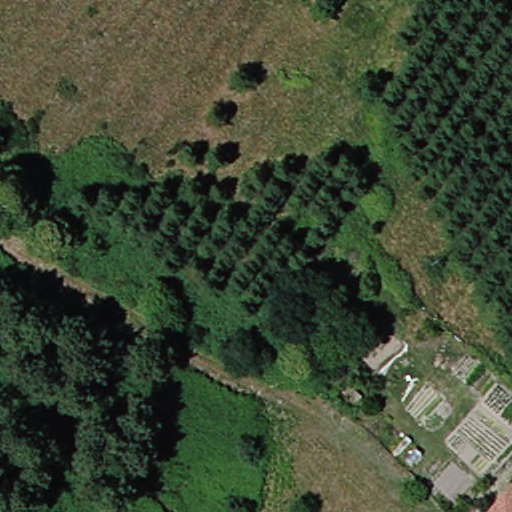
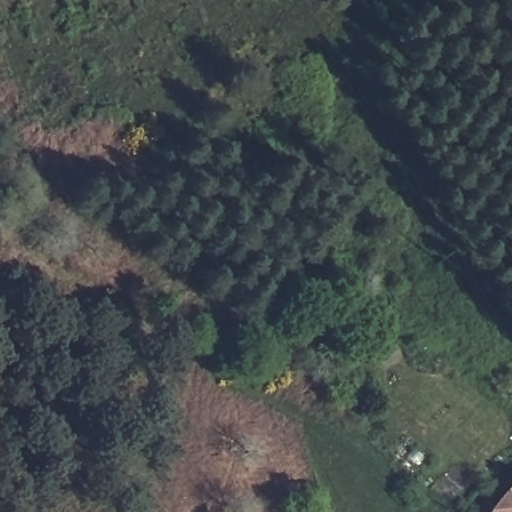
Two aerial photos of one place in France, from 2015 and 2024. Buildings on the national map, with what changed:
unchanged [(488,512),(498,499),(512,483),(512,512),(488,512)]

